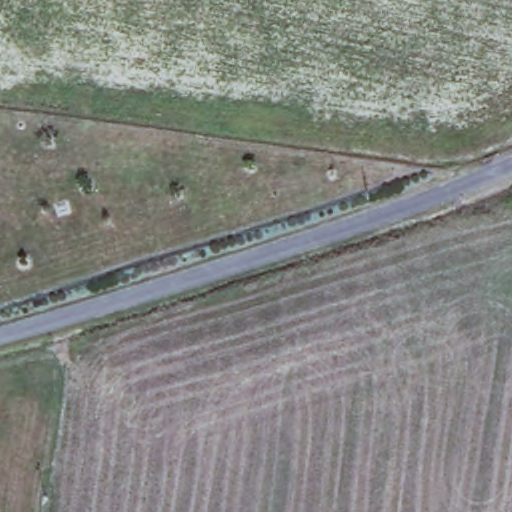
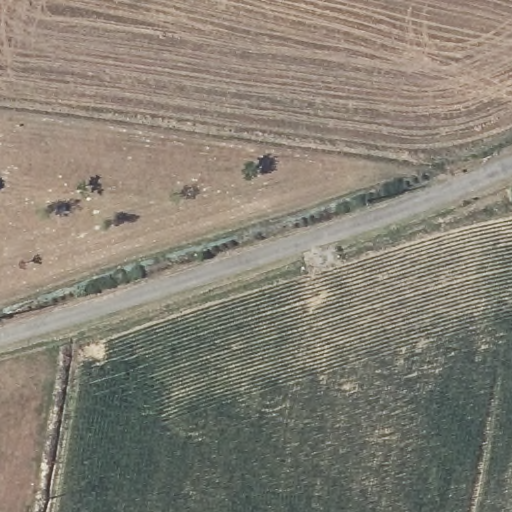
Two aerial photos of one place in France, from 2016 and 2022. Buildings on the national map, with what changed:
[]

